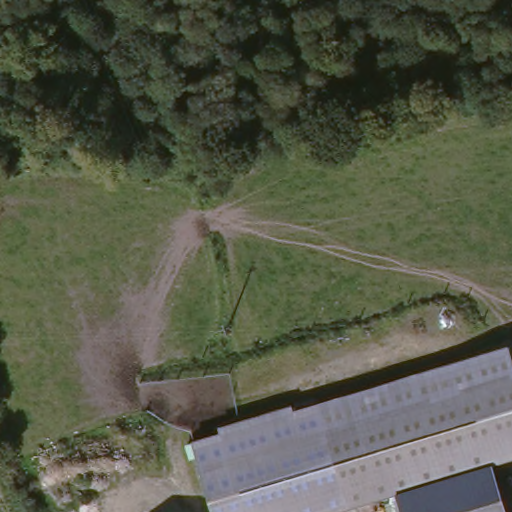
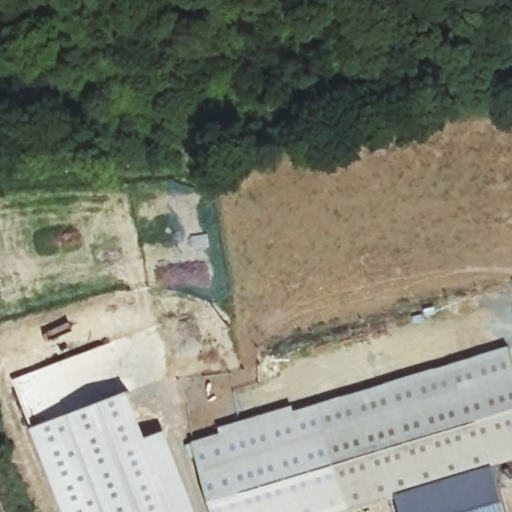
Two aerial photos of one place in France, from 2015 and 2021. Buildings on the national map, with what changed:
unchanged [(313,407),(505,347),(512,369),(512,457),(494,461),(398,488),(345,508),(313,407)]
new [(30,427),(131,390),(148,436),(166,429),(197,512),(64,512),(30,427)]
unchanged [(345,508),(332,512),(214,512),(193,441),(218,433),(216,425),(291,402),(294,410),(313,407),(345,508)]
unchanged [(510,512),(404,512),(398,488),(494,461),(510,512)]

